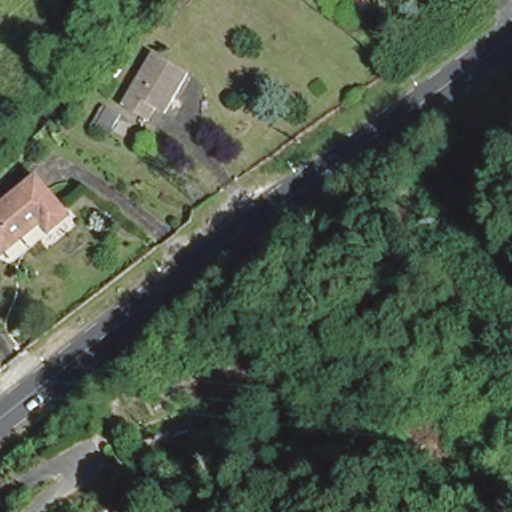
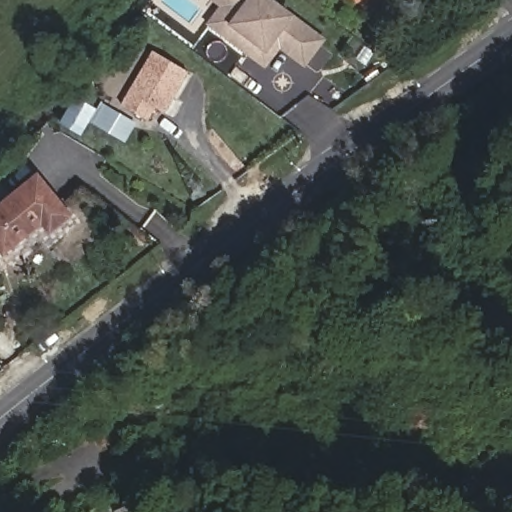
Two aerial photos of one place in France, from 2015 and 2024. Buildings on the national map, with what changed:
new [(235,43),(209,23),(217,13),(222,5),(216,0),(269,0),(321,39),(303,64),(278,44),(263,63),(257,59),(235,43)]
unchanged [(345,0),(366,0),(359,10),(345,0)]
unchanged [(163,118),(129,99),(128,99),(158,44),(165,48),(194,63),(163,118)]
unchanged [(99,71),(92,68),(84,63),(93,47),(103,53),(108,55),(99,71)]
unchanged [(10,248),(5,242),(0,234),(0,209),(48,171),(49,173),(59,184),(79,209),(57,228),(49,218),(10,248)]
unchanged [(120,502),(104,509),(91,486),(106,477),(120,502)]

